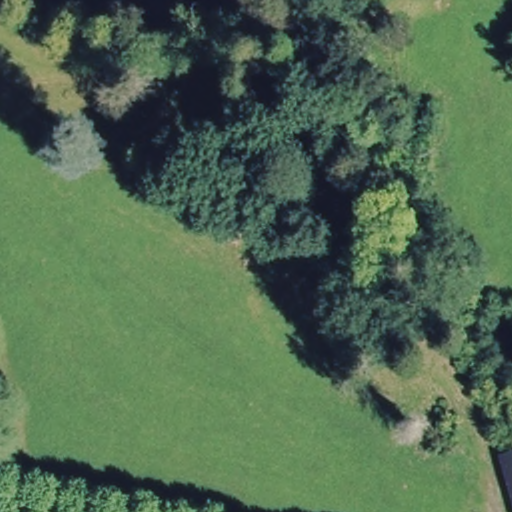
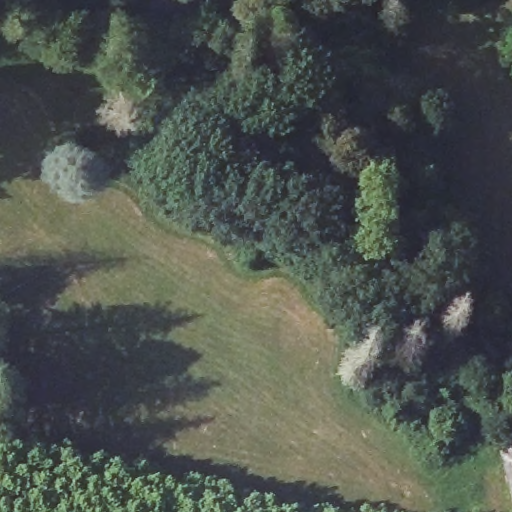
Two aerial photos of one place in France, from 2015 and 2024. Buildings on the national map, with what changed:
unchanged [(512,452),(512,454),(511,452),(512,452)]

